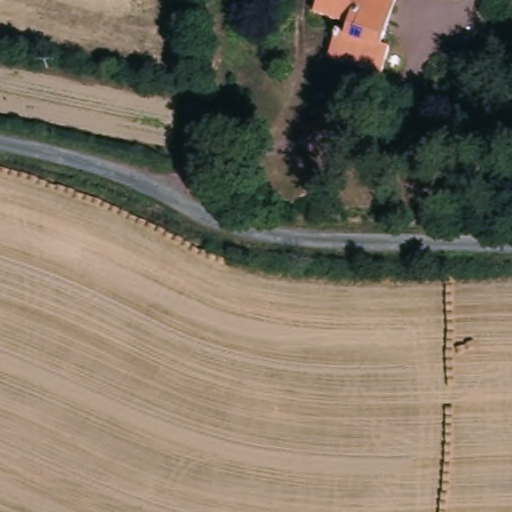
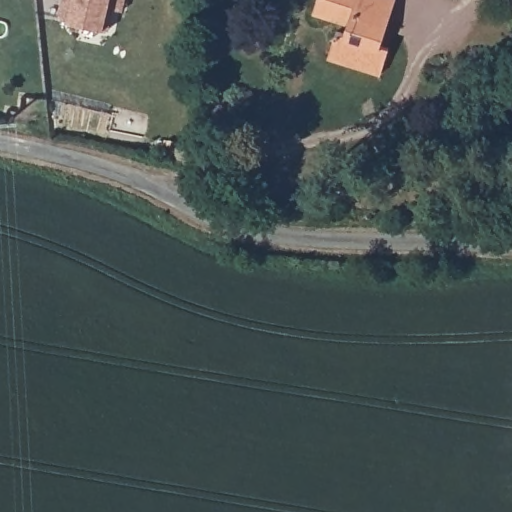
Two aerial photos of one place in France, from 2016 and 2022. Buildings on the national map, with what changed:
new [(108,29),(58,17),(62,0),(124,0),(122,10),(113,8),(108,29)]
unchanged [(393,48),(383,75),(331,56),(340,31),(349,33),(353,22),(315,9),(318,0),(397,0),(381,44),(393,48)]

